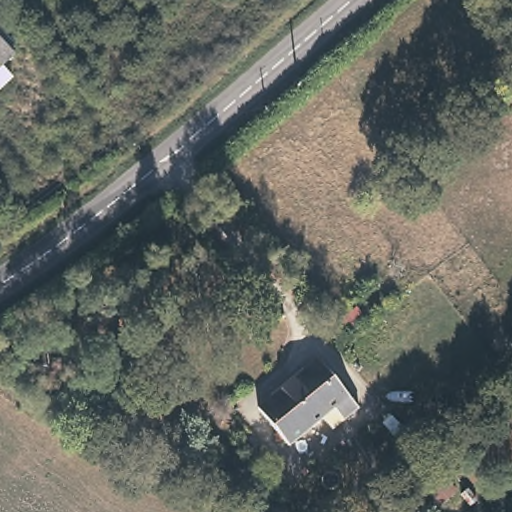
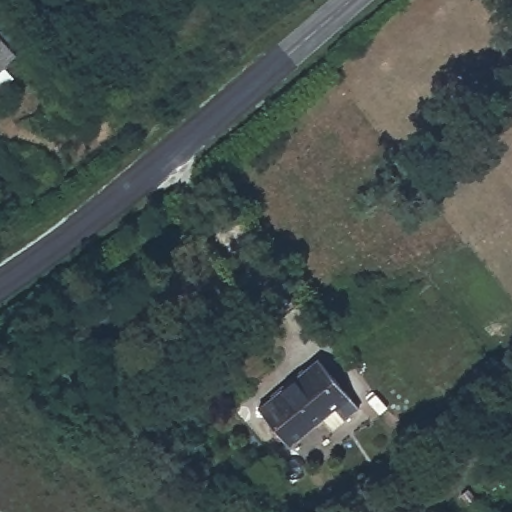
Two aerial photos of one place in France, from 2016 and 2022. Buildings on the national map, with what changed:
unchanged [(15,54),(0,69),(0,39),(15,54)]
unchanged [(444,188),(421,186),(425,145),(449,148),(444,188)]
unchanged [(309,360),(312,358),(353,404),(339,416),(330,407),(288,443),(254,404),(309,360)]
unchanged [(429,464),(454,493),(432,512),(413,512),(395,493),(429,464)]

